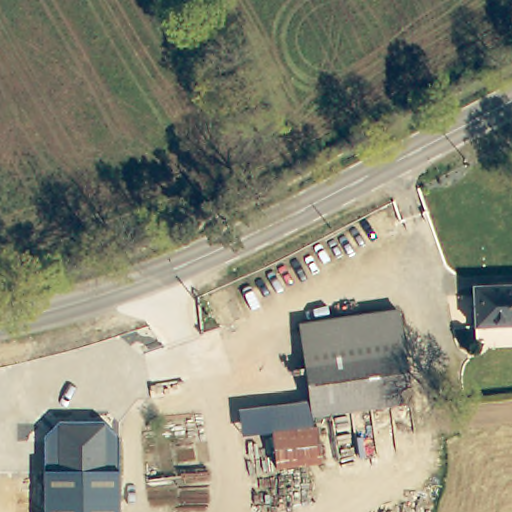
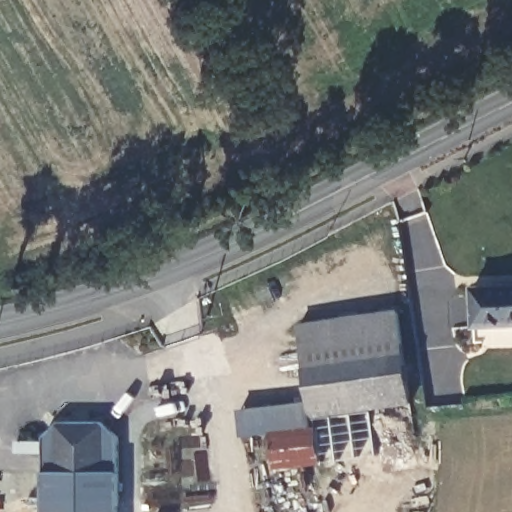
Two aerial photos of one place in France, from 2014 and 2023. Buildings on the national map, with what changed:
unchanged [(469,337),(470,297),(512,294),(512,334),(469,337)]
unchanged [(408,406),(310,417),(299,327),(397,314),(408,406)]
unchanged [(308,402),(310,417),(312,427),(317,427),(321,463),(276,468),(271,432),(242,437),(239,409),(308,400),(308,402)]
unchanged [(115,512),(42,512),(41,432),(56,417),(99,417),(114,432),(115,512)]

